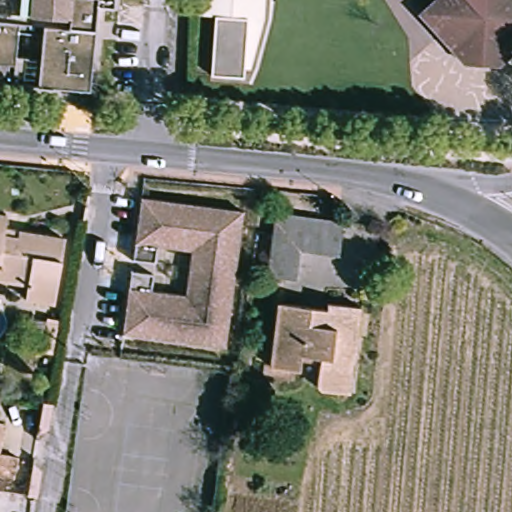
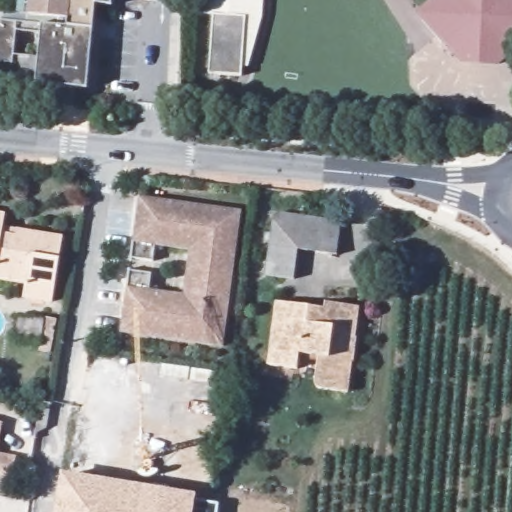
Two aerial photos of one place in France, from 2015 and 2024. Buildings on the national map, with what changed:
unchanged [(32,23),(34,0),(98,0),(98,4),(89,88),(30,82),(10,80),(12,63),(0,61),(0,19),(32,23)]
unchanged [(98,4),(98,0),(115,0),(115,6),(98,4)]
unchanged [(249,21),(246,80),(212,79),(216,18),(199,18),(201,0),(237,0),(236,19),(249,21)]
unchanged [(424,20),(424,13),(439,0),(512,0),(512,52),(497,64),(462,63),(424,20)]
unchanged [(132,272),(157,278),(155,294),(186,299),(194,253),(163,247),(160,262),(134,258),(146,196),(243,213),(241,222),(231,285),(220,349),(121,331),(132,272)]
unchanged [(339,219),(335,255),(327,254),(295,251),(291,279),(263,277),(273,213),(332,219),(339,219)]
unchanged [(2,215),(0,228),(0,215),(2,215)]
unchanged [(65,234),(53,300),(25,295),(27,279),(0,275),(0,235),(18,237),(20,226),(65,234)]
unchanged [(343,391),(314,387),(319,359),(313,358),(320,311),(324,312),(326,300),(355,304),(367,306),(362,339),(358,364),(353,392),(343,391)]
unchanged [(296,356),(295,372),(269,369),(279,305),(320,311),(313,358),(296,356)]
unchanged [(2,428),(0,440),(0,427),(2,428)]
unchanged [(0,479),(0,452),(20,456),(17,481),(0,479)]
new [(195,500),(218,504),(217,512),(54,512),(61,472),(196,494),(195,500)]

